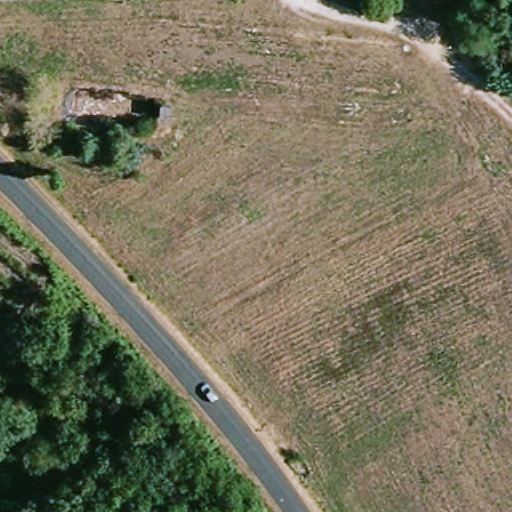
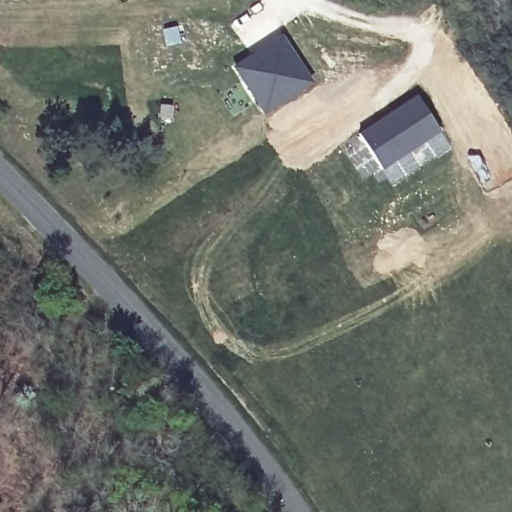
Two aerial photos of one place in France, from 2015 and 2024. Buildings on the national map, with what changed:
new [(230,67),(281,35),(312,83),(261,112),(230,67)]
new [(440,132),(382,169),(359,132),(416,95),(440,132)]

